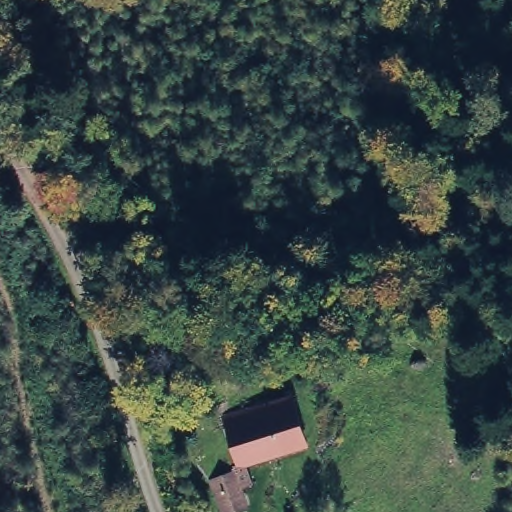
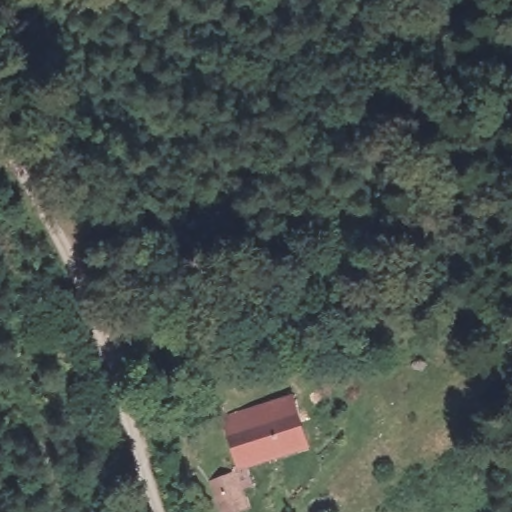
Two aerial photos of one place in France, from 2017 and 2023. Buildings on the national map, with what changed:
unchanged [(296,398),(308,445),(235,465),(222,417),(296,398)]
unchanged [(231,475),(242,512),(220,512),(210,480),(231,475)]

